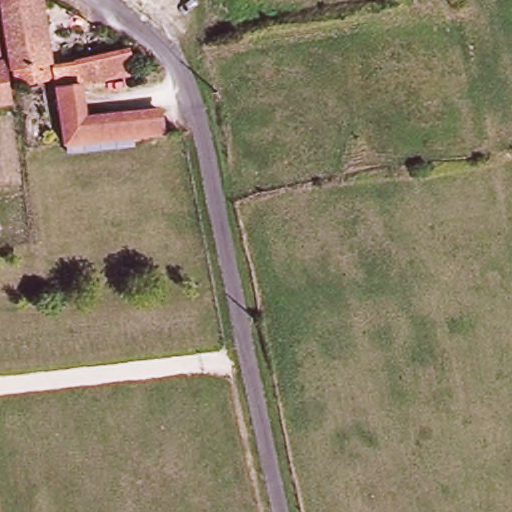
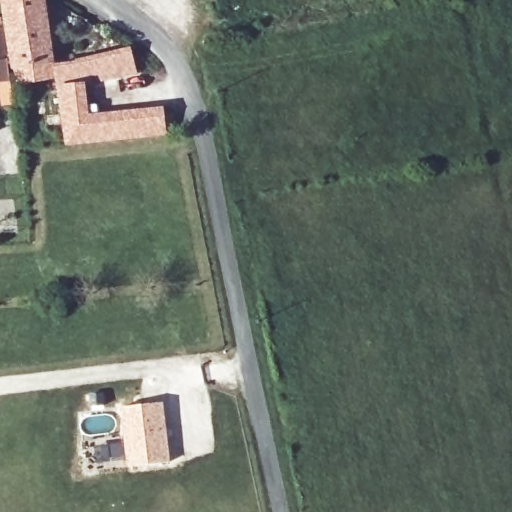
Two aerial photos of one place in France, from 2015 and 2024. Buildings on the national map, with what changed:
unchanged [(11,3),(10,0),(29,0),(11,3)]
unchanged [(29,0),(45,0),(57,79),(24,87),(11,3),(29,0)]
unchanged [(8,18),(19,103),(0,105),(0,19),(8,18)]
unchanged [(141,75),(92,86),(95,118),(167,117),(169,138),(73,145),(64,91),(63,67),(140,49),(141,75)]
new [(176,461),(129,465),(122,405),(169,401),(176,461)]

